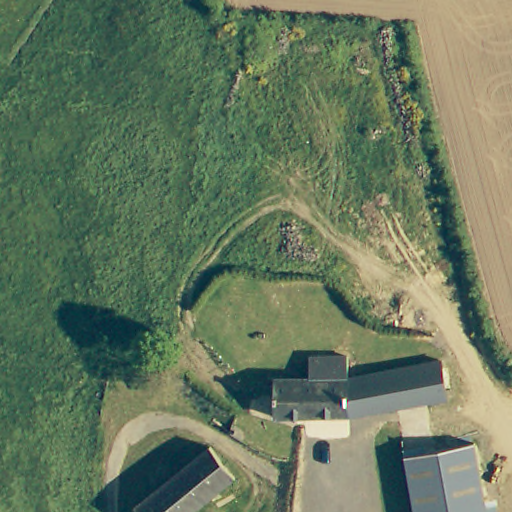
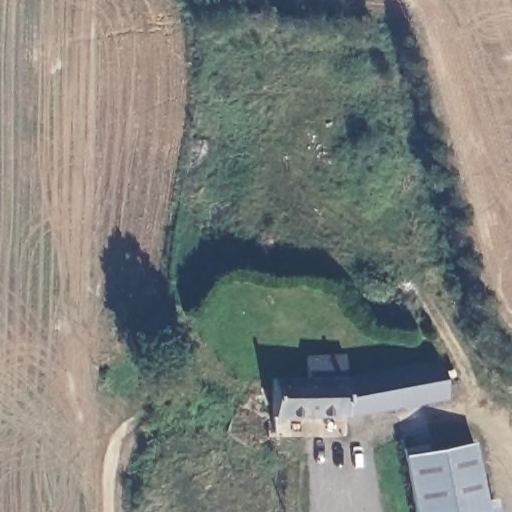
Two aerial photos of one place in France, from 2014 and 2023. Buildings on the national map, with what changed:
unchanged [(273,424),(267,389),(312,384),(310,358),(339,357),(340,377),(443,365),(447,407),(273,424)]
unchanged [(421,512),(411,454),(482,443),(492,512),(421,512)]
demolished [(208,451),(233,483),(192,512),(132,512),(128,507),(160,484),(201,455),(208,451)]

